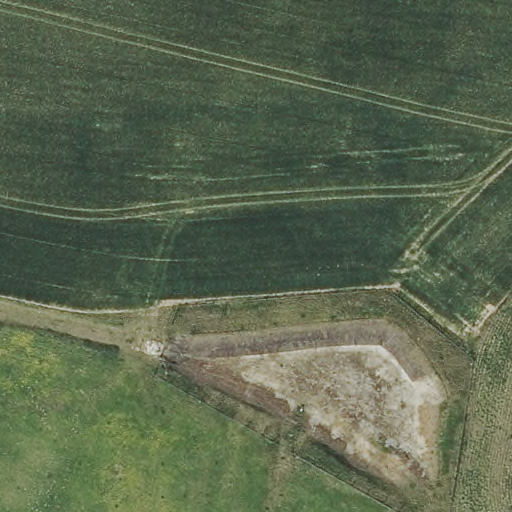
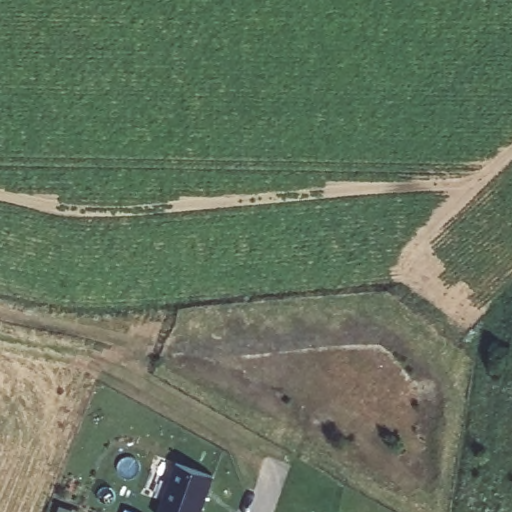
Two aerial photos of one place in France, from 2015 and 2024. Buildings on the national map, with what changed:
new [(213,476),(201,512),(157,512),(175,462),(213,476)]
new [(56,512),(58,505),(70,509),(70,512),(56,512)]

